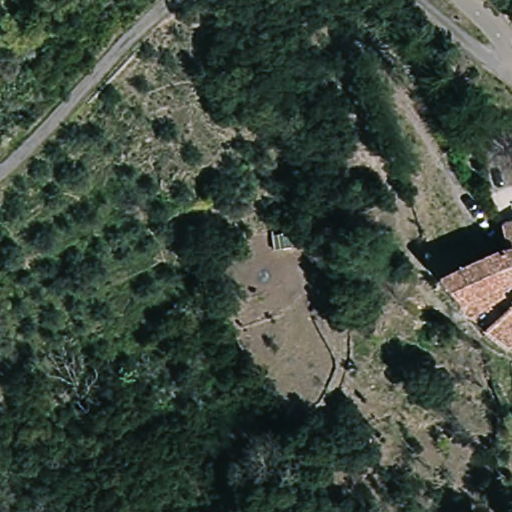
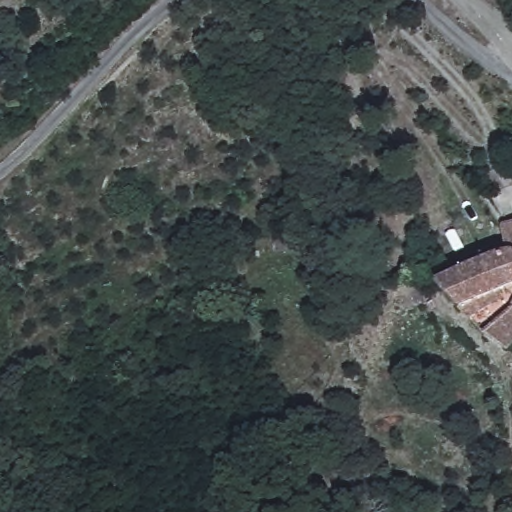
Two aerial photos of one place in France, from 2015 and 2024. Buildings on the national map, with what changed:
unchanged [(464,273),(477,266),(506,251),(500,220),(512,218),(512,285),(500,290),(498,290),(505,298),(498,307),(505,314),(486,330),(441,284),(464,273)]
unchanged [(486,330),(505,314),(512,307),(512,346),(506,352),(503,348),(486,330)]

